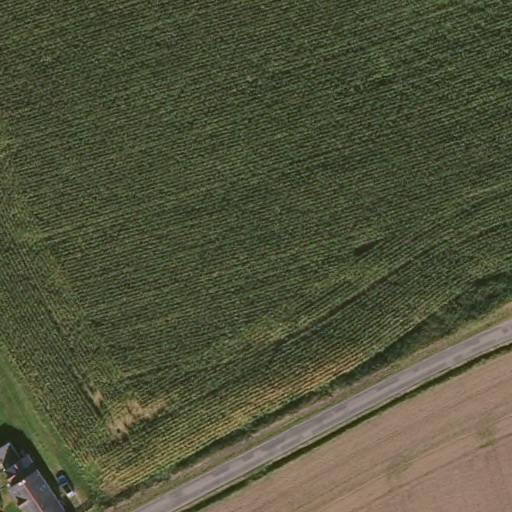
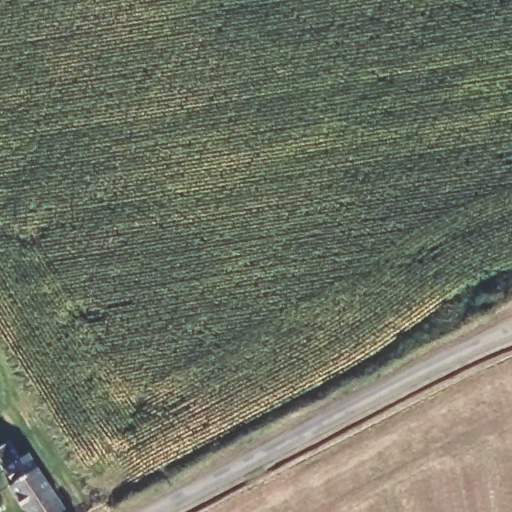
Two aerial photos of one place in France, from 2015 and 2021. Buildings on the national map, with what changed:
unchanged [(76,511),(73,512),(37,512),(20,489),(25,485),(16,470),(7,457),(22,446),(32,460),(37,457),(76,511)]

